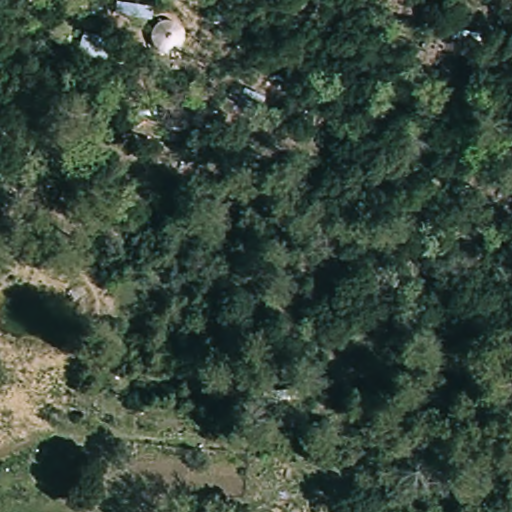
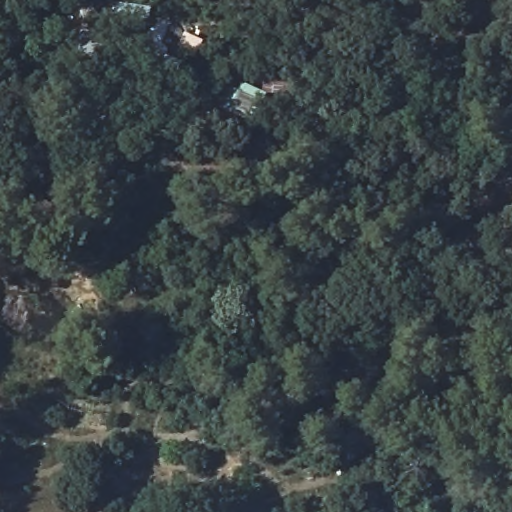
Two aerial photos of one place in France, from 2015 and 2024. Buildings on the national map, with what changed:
unchanged [(184,42),(182,47),(176,52),(173,54),(169,55),(163,56),(157,54),(152,49),(150,45),(149,42),(149,40),(149,36),(152,30),(156,24),(163,21),(168,21),(173,22),(177,24),(181,29),(183,33),(184,42)]

